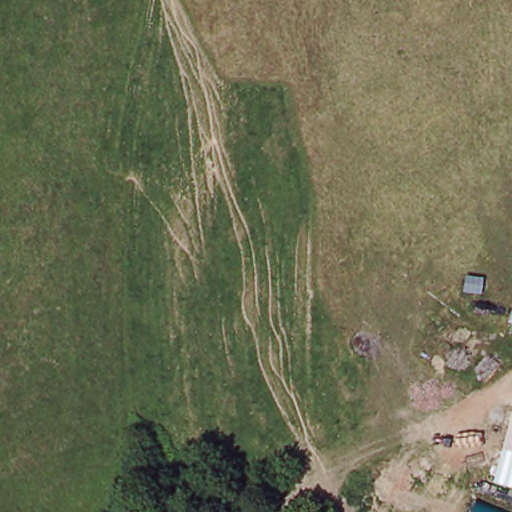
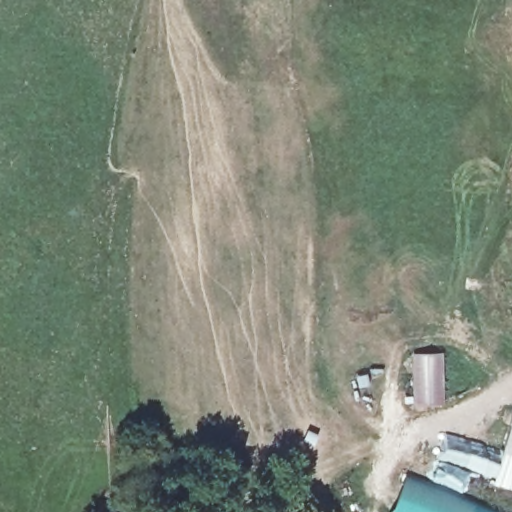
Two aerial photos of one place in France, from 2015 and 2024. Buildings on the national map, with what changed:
new [(413,404),(411,353),(439,352),(440,403),(413,404)]
unchanged [(498,454),(511,411),(512,411),(512,457),(498,454)]
new [(512,457),(512,488),(493,483),(500,455),(512,457)]
new [(495,512),(388,512),(401,476),(495,512)]

